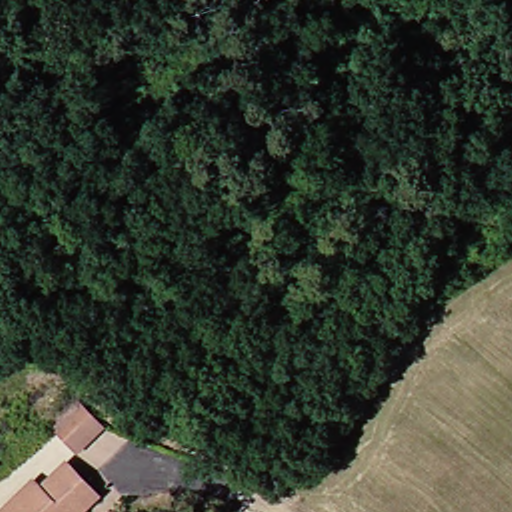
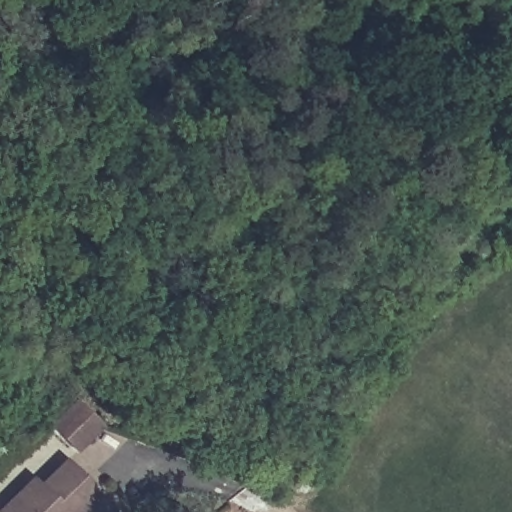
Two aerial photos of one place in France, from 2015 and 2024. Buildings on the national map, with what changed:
unchanged [(99,427),(73,452),(65,445),(48,428),(74,403),(89,417),(99,427)]
unchanged [(29,478),(36,487),(60,460),(94,490),(74,512),(0,512),(0,507),(29,478)]

